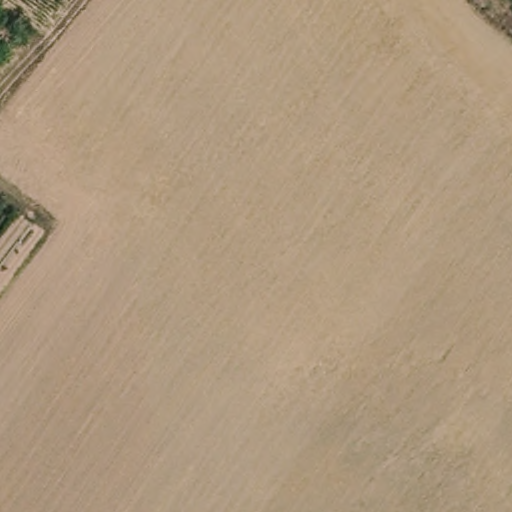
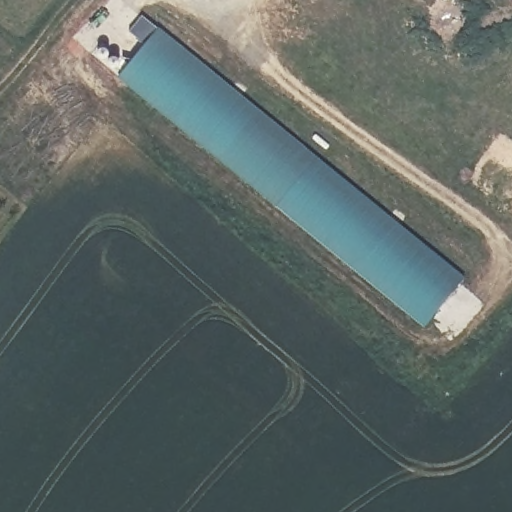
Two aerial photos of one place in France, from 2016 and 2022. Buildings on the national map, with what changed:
new [(117,79),(144,44),(129,32),(144,15),(157,27),(466,277),(424,327),(117,79)]

